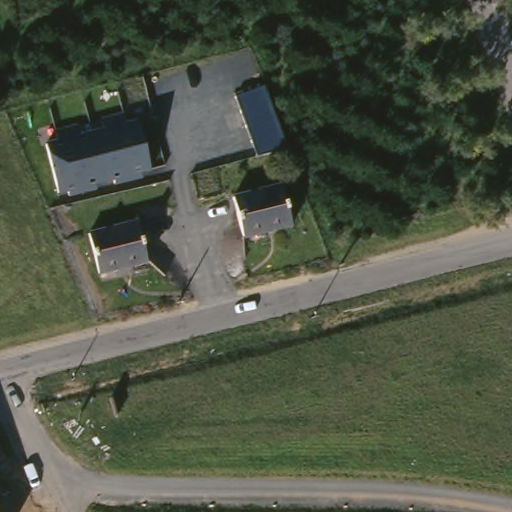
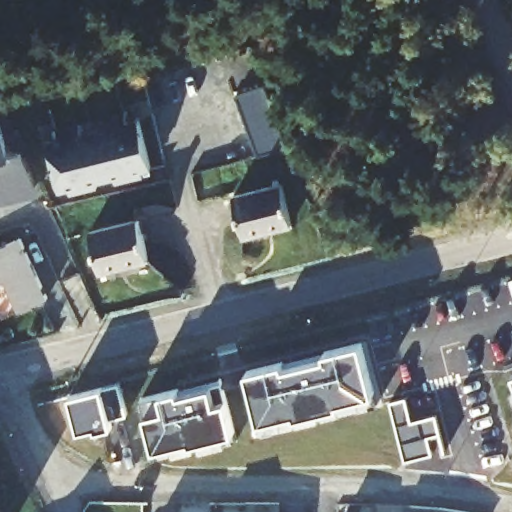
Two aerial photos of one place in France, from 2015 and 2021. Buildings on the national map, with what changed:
unchanged [(265,83),(288,149),(255,155),(236,94),(265,83)]
unchanged [(152,173),(58,194),(46,141),(60,138),(59,127),(81,122),(82,130),(104,126),(102,116),(124,111),(126,120),(136,119),(152,173)]
new [(7,158),(21,155),(31,195),(0,203),(0,129),(7,158)]
unchanged [(292,180),(302,219),(253,232),(243,193),(292,180)]
unchanged [(148,217),(158,257),(109,269),(99,229),(148,217)]
new [(21,238),(48,299),(19,313),(5,282),(0,284),(0,248),(21,238)]
new [(512,395),(479,312),(512,299),(512,395)]
new [(360,345),(376,409),(261,437),(245,374),(360,345)]
new [(119,387),(127,419),(109,423),(111,431),(96,435),(95,431),(78,435),(69,399),(119,387)]
new [(179,390),(180,398),(221,388),(235,444),(156,464),(140,400),(179,390)]
new [(405,402),(411,427),(430,423),(434,437),(422,439),(426,457),(407,462),(392,406),(405,402)]

